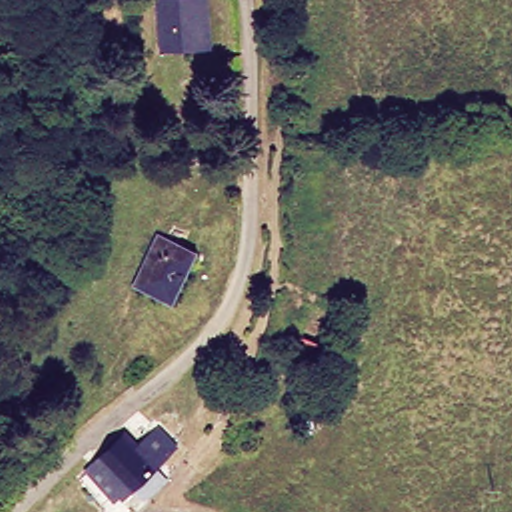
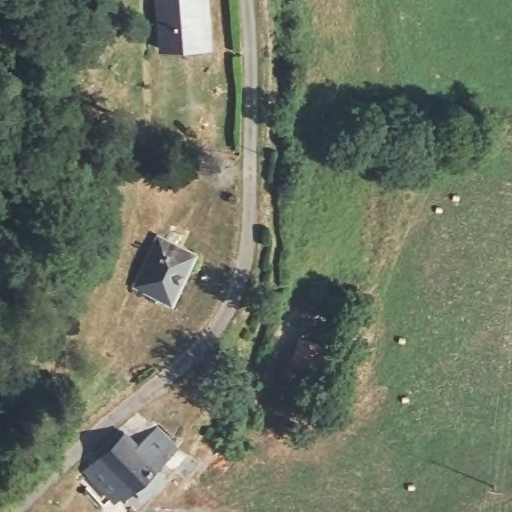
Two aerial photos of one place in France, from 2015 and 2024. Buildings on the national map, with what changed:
unchanged [(208,40),(167,44),(163,0),(204,0),(208,40)]
unchanged [(180,296),(149,283),(165,239),(197,250),(180,296)]
unchanged [(141,418),(153,429),(164,421),(183,442),(145,477),(124,500),(96,470),(116,451),(110,448),(141,418)]

